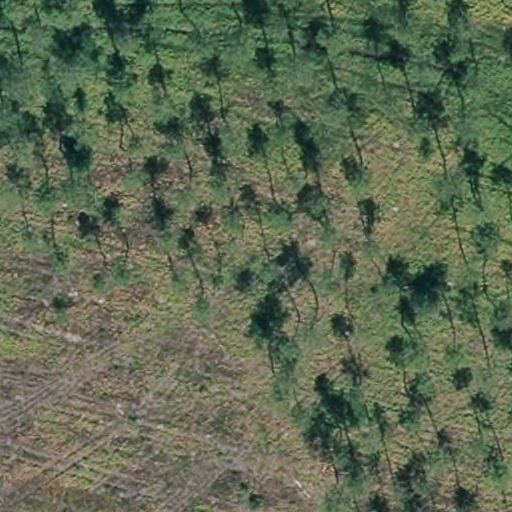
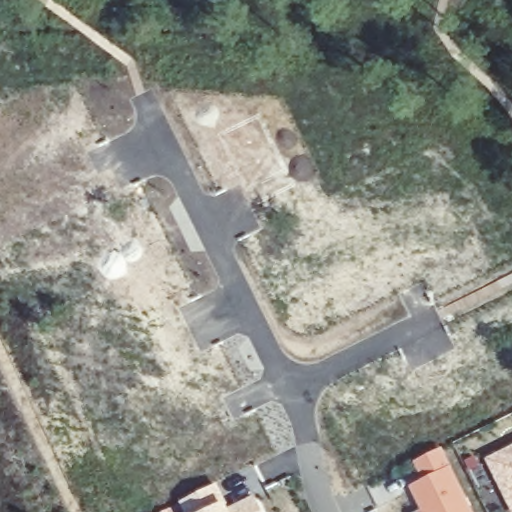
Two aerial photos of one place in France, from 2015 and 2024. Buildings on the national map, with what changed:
new [(486,457),(512,445),(512,512),(486,457)]
new [(424,512),(412,485),(423,480),(414,461),(444,447),(474,512),(424,512)]
new [(257,493),(265,512),(187,512),(181,501),(219,483),(231,505),(257,493)]

